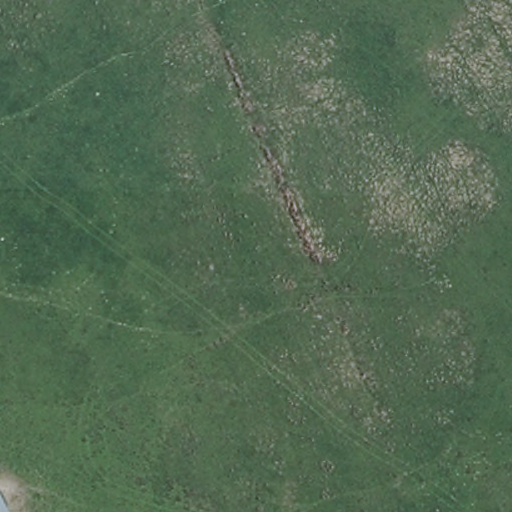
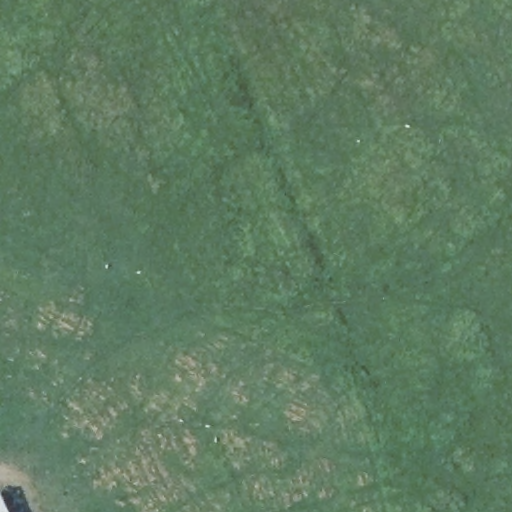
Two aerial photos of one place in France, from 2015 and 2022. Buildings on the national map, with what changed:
unchanged [(0,512),(0,492),(9,512),(0,512)]

